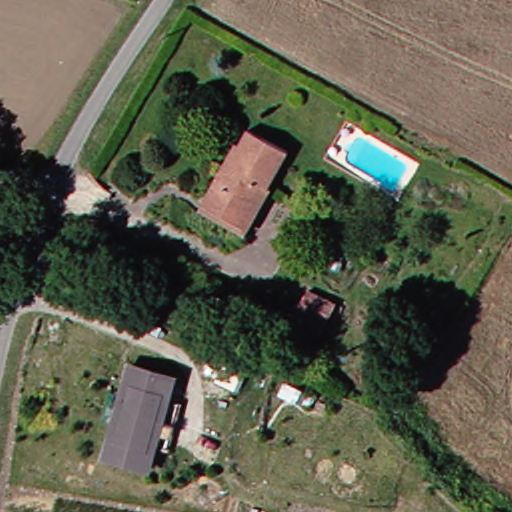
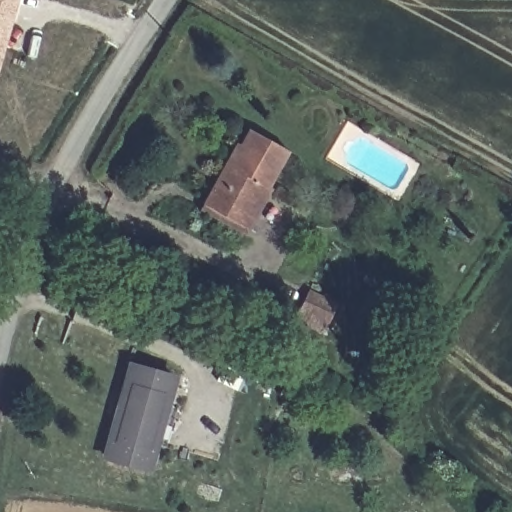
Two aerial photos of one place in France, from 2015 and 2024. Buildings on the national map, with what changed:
new [(20,0),(0,66),(0,0),(20,0)]
unchanged [(239,231),(230,224),(194,206),(216,163),(226,144),(232,146),(240,131),(277,153),(256,190),(260,192),(239,231)]
unchanged [(332,303),(315,338),(283,322),(301,289),(332,303)]
unchanged [(169,445),(155,443),(151,463),(107,456),(123,362),(167,369),(164,395),(176,396),(169,445)]

